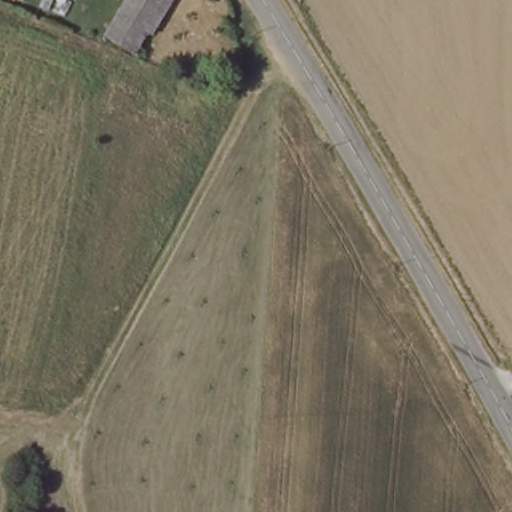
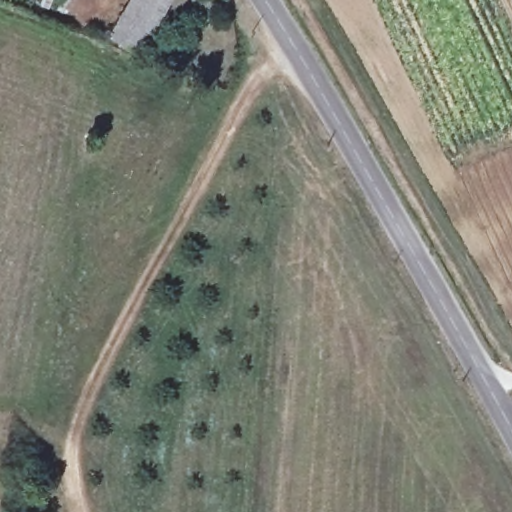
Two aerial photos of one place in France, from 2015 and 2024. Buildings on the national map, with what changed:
unchanged [(140,50),(104,31),(121,0),(170,0),(140,50)]

